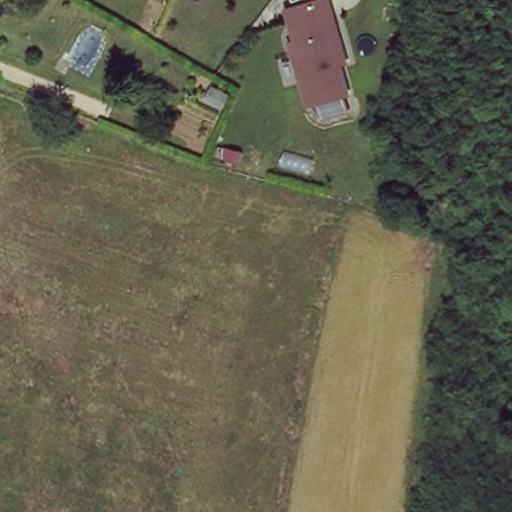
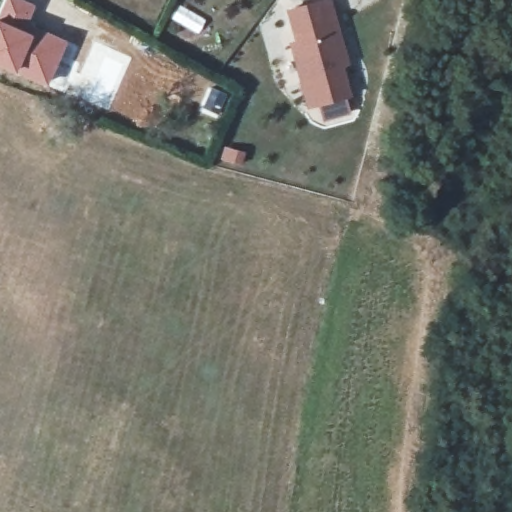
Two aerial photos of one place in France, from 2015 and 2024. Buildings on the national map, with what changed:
new [(47,87),(0,66),(0,9),(4,0),(28,0),(36,3),(30,22),(67,39),(47,87)]
unchanged [(328,121),(324,106),(313,109),(295,44),(301,43),(292,11),(329,0),(331,0),(341,34),(335,36),(352,98),(345,100),(350,115),(328,121)]

